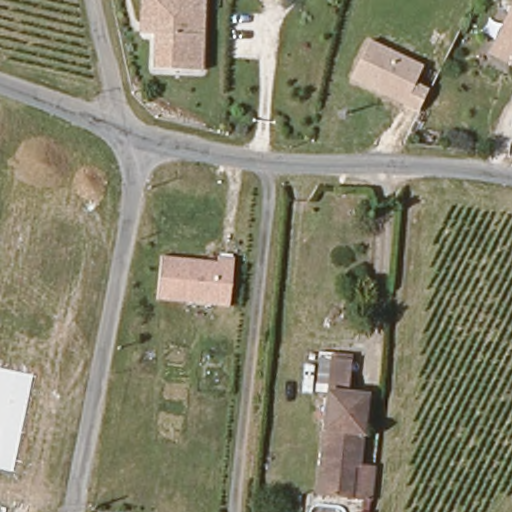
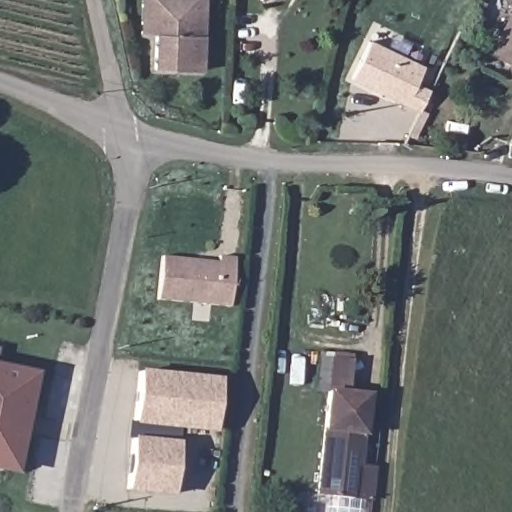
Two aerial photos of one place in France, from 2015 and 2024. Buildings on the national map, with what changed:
unchanged [(205,72),(149,72),(150,35),(137,34),(137,0),(207,0),(205,72)]
unchanged [(512,65),(487,53),(512,2),(512,65)]
unchanged [(412,82),(429,89),(418,113),(347,81),(365,41),(420,65),(412,82)]
unchanged [(160,254),(216,261),(216,254),(234,256),(229,306),(155,298),(160,254)]
unchanged [(315,494),(327,390),(332,350),(352,353),(346,392),(366,395),(359,464),(374,466),(370,501),(350,499),(315,494)]
new [(15,474),(0,471),(0,364),(37,373),(15,474)]
new [(135,424),(141,368),(221,376),(215,432),(135,424)]
new [(129,491),(134,435),(179,440),(174,495),(129,491)]

